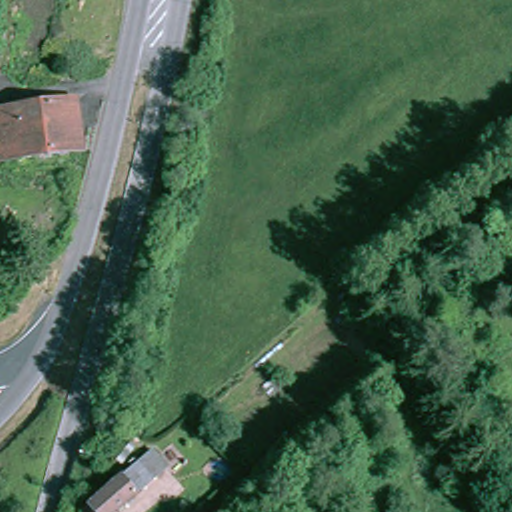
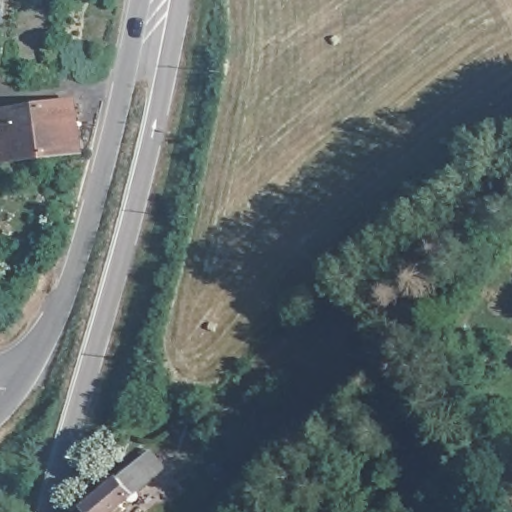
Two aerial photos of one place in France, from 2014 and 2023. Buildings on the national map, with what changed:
unchanged [(0,172),(0,117),(81,99),(91,151),(0,172)]
unchanged [(119,511),(107,496),(139,471),(151,487),(119,511)]

